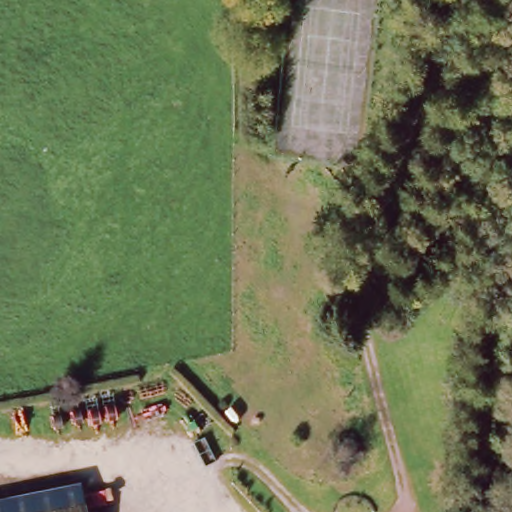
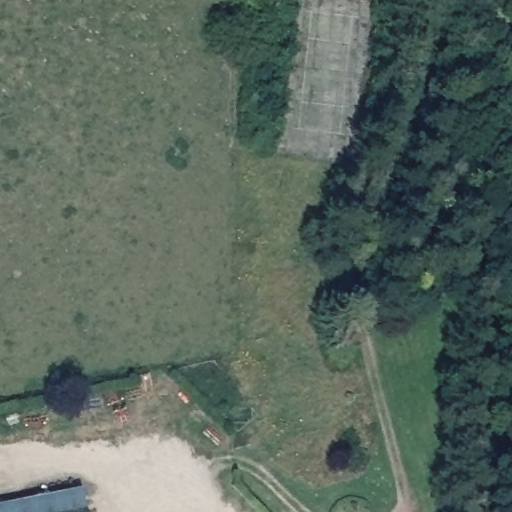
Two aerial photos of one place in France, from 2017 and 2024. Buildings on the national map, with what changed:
unchanged [(86,512),(63,512),(85,507),(86,512)]

